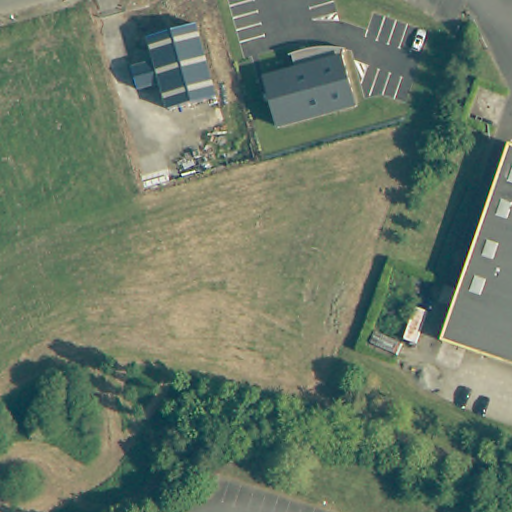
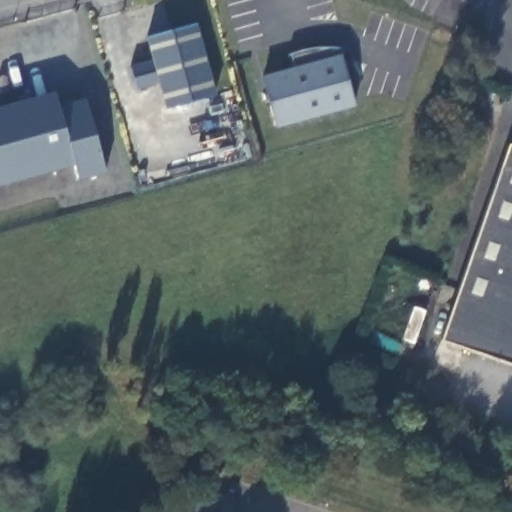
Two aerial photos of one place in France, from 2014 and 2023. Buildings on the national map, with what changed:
unchanged [(171,113),(163,87),(140,93),(134,71),(157,65),(150,41),(199,27),(219,100),(171,113)]
unchanged [(264,75),(295,65),(291,54),(316,48),(331,47),(345,49),(343,55),(357,106),(277,128),(264,75)]
demolished [(47,147),(40,120),(16,127),(10,105),(34,98),(27,74),(75,61),(95,133),(47,147)]
new [(78,180),(74,165),(0,185),(0,107),(55,92),(59,106),(86,98),(105,172),(78,180)]
unchanged [(512,147),(512,362),(444,340),(508,146),(512,147)]

